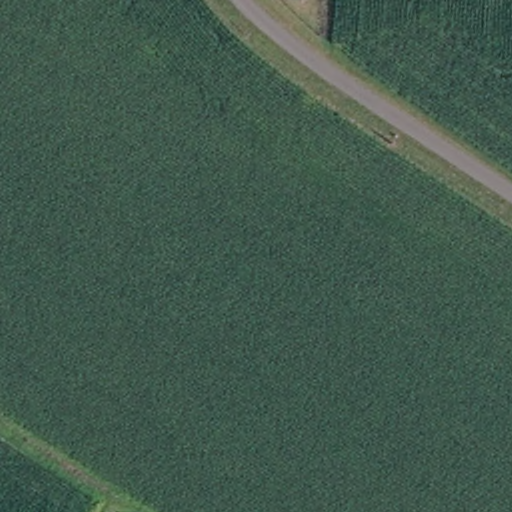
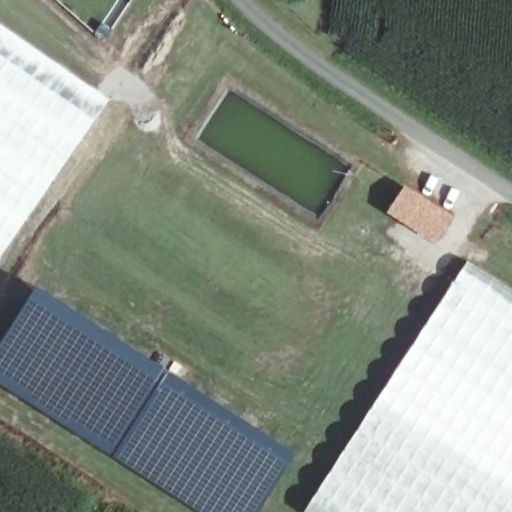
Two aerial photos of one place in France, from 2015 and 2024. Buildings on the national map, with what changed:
new [(108,100),(0,258),(0,24),(108,100)]
new [(454,217),(437,245),(388,216),(405,186),(454,217)]
new [(512,290),(512,512),(307,512),(469,262),(512,290)]
new [(37,287),(297,456),(260,512),(202,512),(0,383),(0,345),(37,287)]

